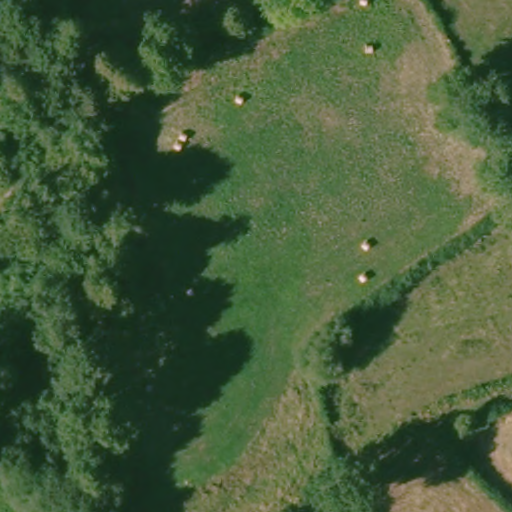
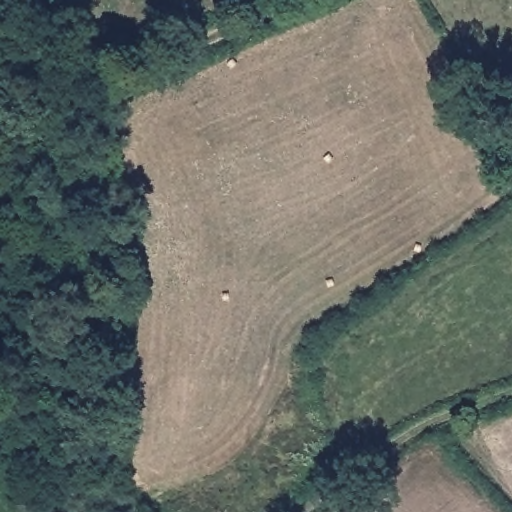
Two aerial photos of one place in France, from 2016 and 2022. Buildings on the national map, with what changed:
unchanged [(105,294),(93,294),(92,279),(105,278),(105,294)]

